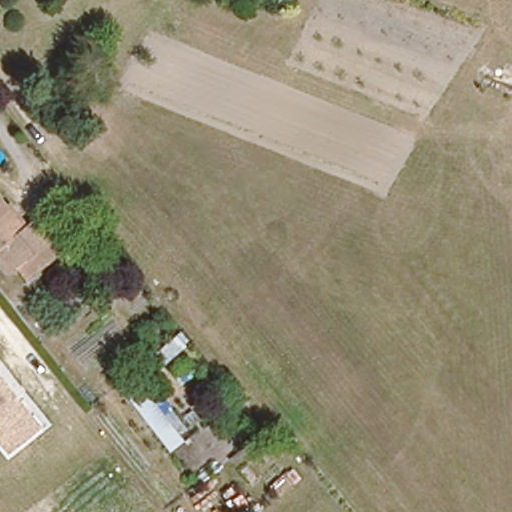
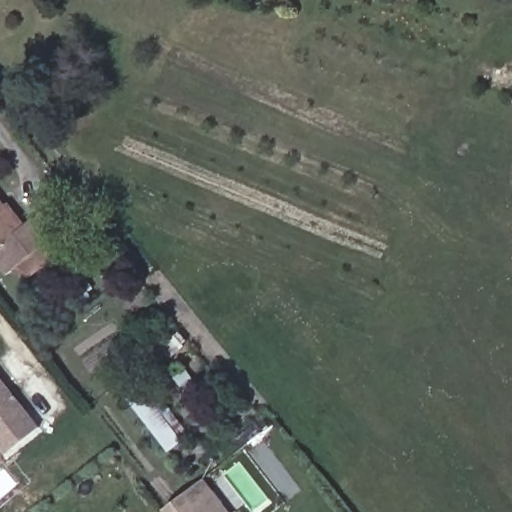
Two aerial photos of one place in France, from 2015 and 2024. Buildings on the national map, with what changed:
unchanged [(15,268),(10,272),(0,259),(0,192),(9,203),(14,199),(29,218),(42,206),(60,228),(49,238),(60,255),(28,285),(15,268)]
unchanged [(0,445),(0,374),(43,428),(10,457),(0,445)]
new [(231,512),(167,512),(165,509),(205,478),(231,512)]

